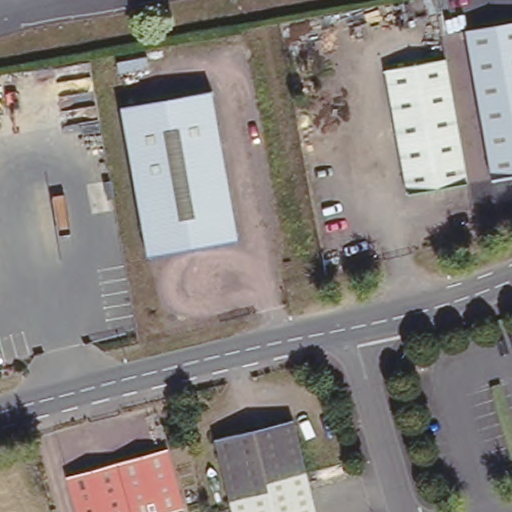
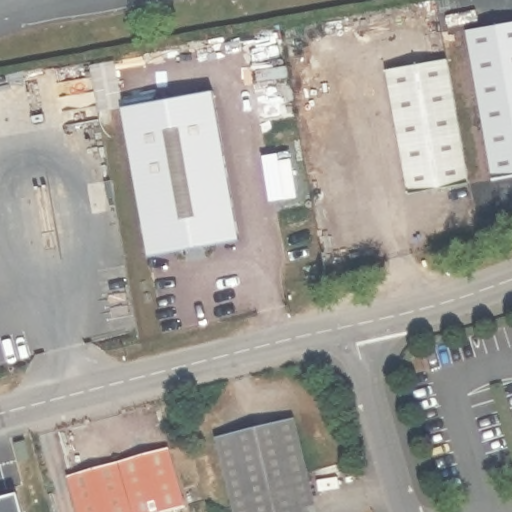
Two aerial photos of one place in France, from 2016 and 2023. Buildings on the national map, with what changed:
unchanged [(512,19),(512,172),(488,177),(461,28),(512,19)]
unchanged [(441,55),(465,185),(403,197),(379,66),(441,55)]
unchanged [(119,105),(210,89),(236,239),(145,254),(119,105)]
unchanged [(301,416),(322,512),(237,512),(219,436),(301,416)]
unchanged [(84,512),(73,472),(172,446),(189,508),(176,512),(84,512)]
new [(21,512),(0,512),(0,501),(17,496),(21,512)]

